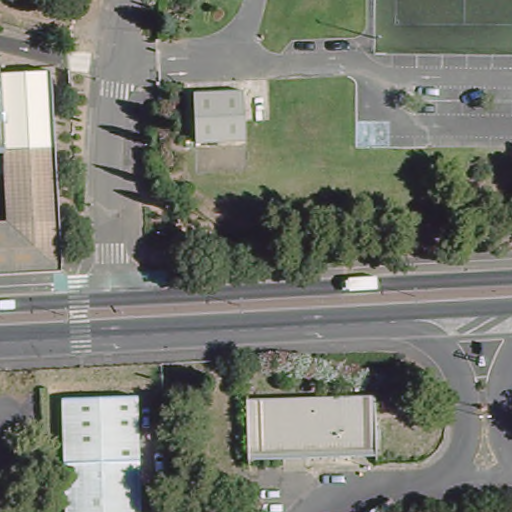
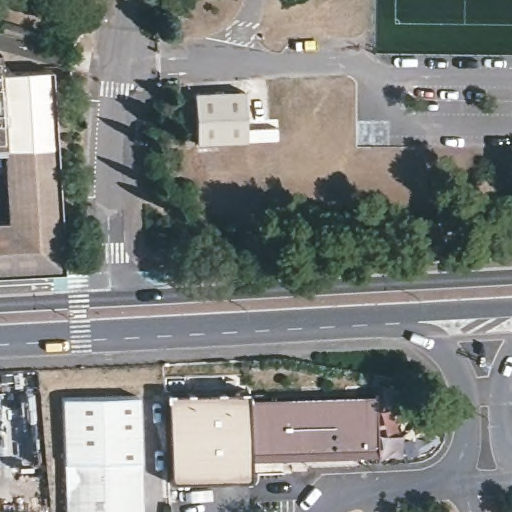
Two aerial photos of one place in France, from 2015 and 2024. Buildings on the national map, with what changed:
unchanged [(9,146),(0,146),(0,37),(2,37),(3,58),(54,55),(59,144),(9,146)]
unchanged [(194,88),(245,85),(247,139),(197,143),(194,88)]
unchanged [(9,146),(59,144),(63,219),(12,222),(9,146)]
unchanged [(65,269),(0,272),(0,223),(12,222),(63,219),(65,258),(65,269)]
new [(171,477),(169,394),(245,393),(247,477),(171,477)]
unchanged [(140,400),(143,512),(68,512),(65,402),(140,400)]
unchanged [(379,401),(379,456),(250,459),(249,403),(379,401)]

